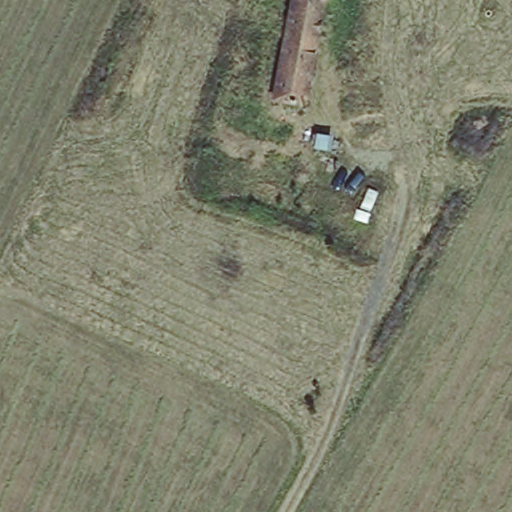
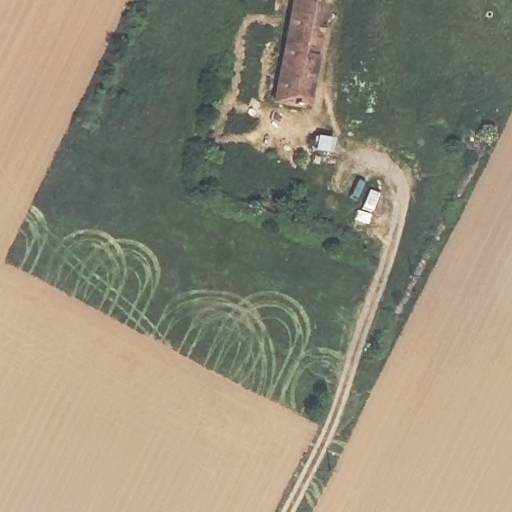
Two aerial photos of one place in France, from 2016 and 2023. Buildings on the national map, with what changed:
unchanged [(294,0),(325,0),(306,104),(277,97),(294,0)]

